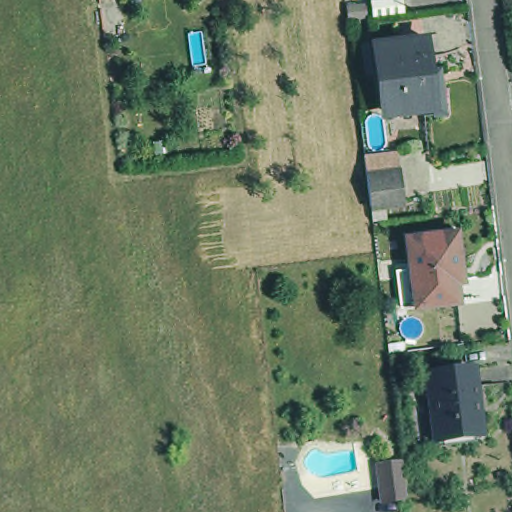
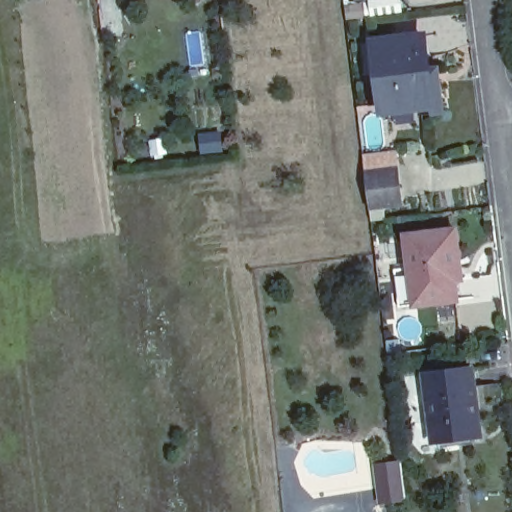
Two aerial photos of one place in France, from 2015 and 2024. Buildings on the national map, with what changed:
unchanged [(379,102),(370,32),(419,27),(423,60),(433,60),(437,96),(427,97),(423,98),(379,102)]
unchanged [(370,205),(365,172),(364,155),(395,151),(397,167),(400,200),(370,205)]
unchanged [(400,261),(415,260),(410,227),(460,222),(464,260),(465,272),(460,272),(462,292),(419,297),(404,298),(400,261)]
unchanged [(479,433),(434,438),(426,372),(472,367),(479,433)]
unchanged [(402,465),(406,500),(381,503),(379,481),(377,468),(402,465)]

